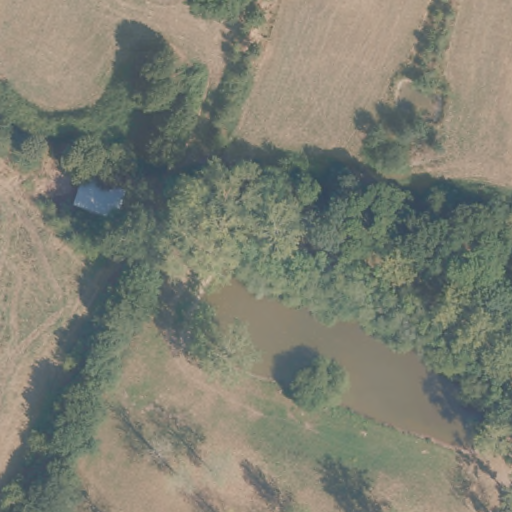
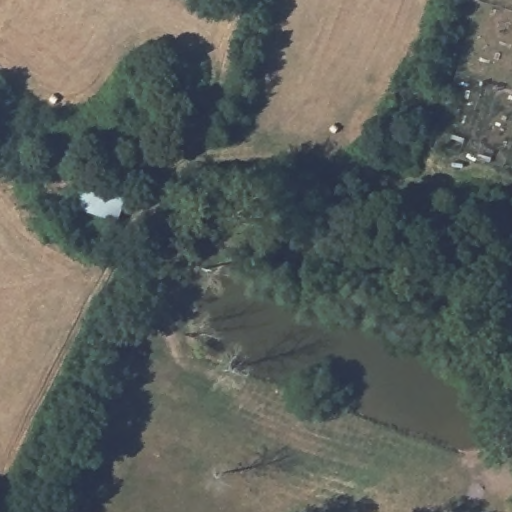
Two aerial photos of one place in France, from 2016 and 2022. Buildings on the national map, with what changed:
unchanged [(125,195),(116,220),(74,207),(83,179),(125,195)]

